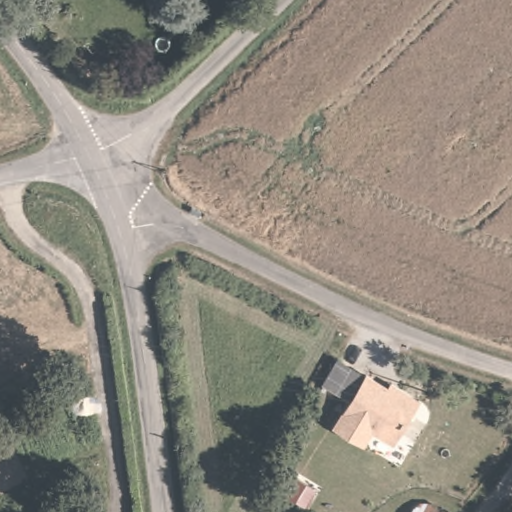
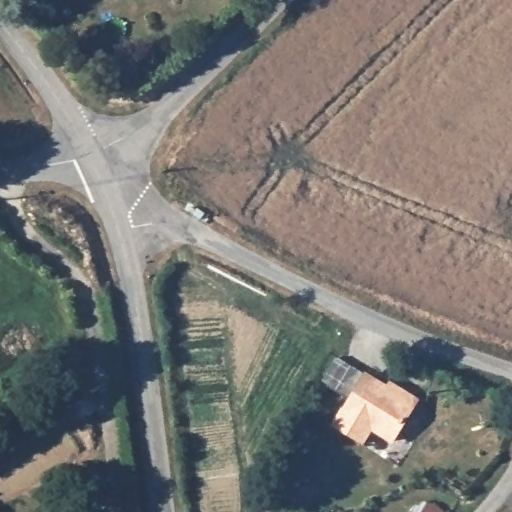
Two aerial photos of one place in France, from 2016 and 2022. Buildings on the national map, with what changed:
unchanged [(387,385),(389,382),(418,398),(393,445),(371,432),(362,447),(331,428),(349,397),(323,385),(336,360),(387,385)]
unchanged [(405,508),(412,510),(419,502),(438,512),(402,512),(405,508)]

